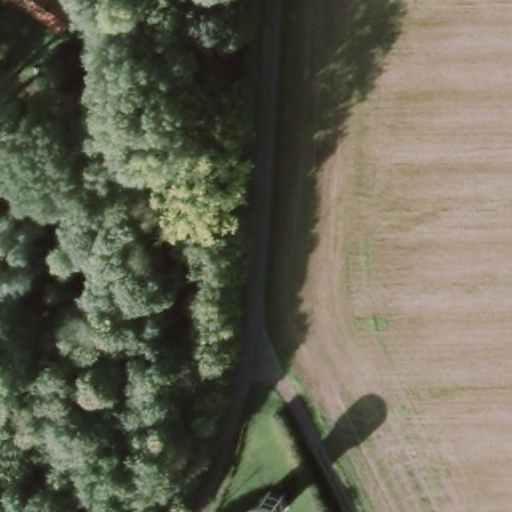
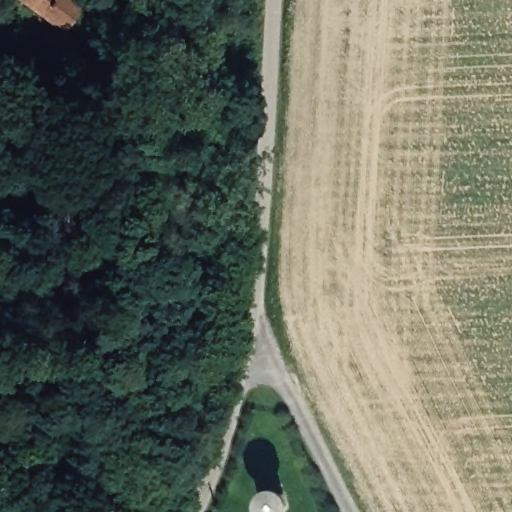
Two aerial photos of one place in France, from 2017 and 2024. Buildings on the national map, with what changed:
unchanged [(83,4),(64,34),(18,0),(78,0),(83,4)]

